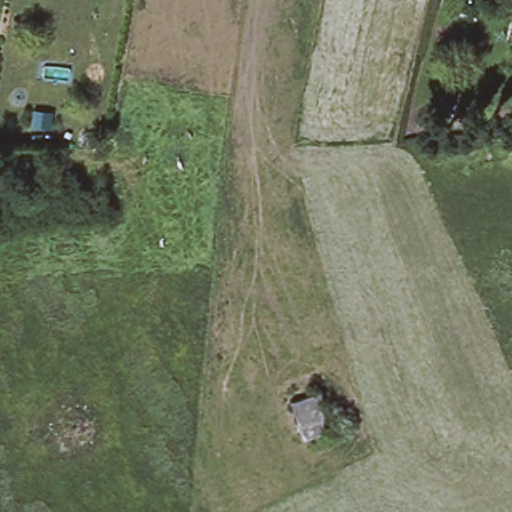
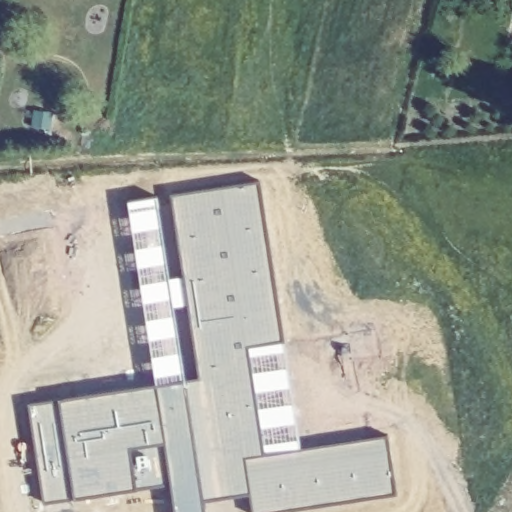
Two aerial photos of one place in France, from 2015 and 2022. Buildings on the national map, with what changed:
new [(282,343),(244,348),(263,457),(386,437),(396,495),(278,512),(253,512),(251,494),(203,501),(204,512),(175,512),(170,482),(44,505),(28,406),(199,380),(172,197),(258,186),(282,343)]
unchanged [(294,404),(322,395),(332,431),(306,446),(294,404)]

